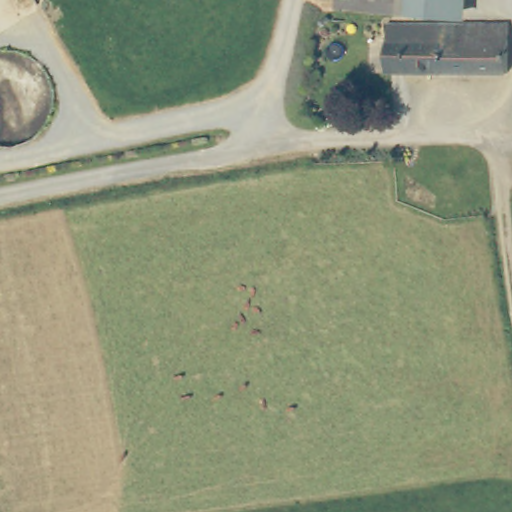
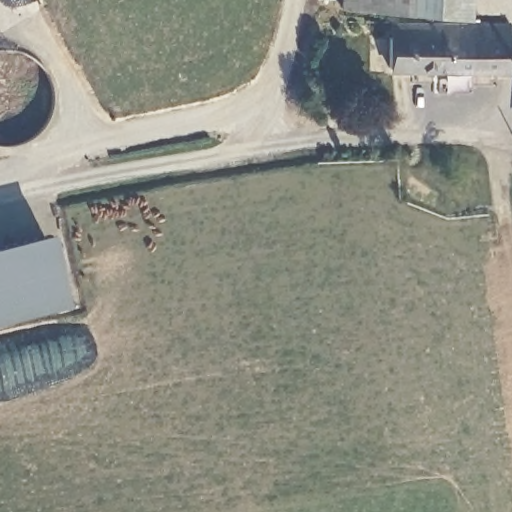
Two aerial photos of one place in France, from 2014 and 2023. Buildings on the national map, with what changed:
unchanged [(344,13),(344,0),(466,0),(465,19),(344,13)]
unchanged [(411,74),(411,71),(393,72),(394,41),(394,40),(392,27),(444,26),(508,25),(509,73),(411,74)]
new [(68,310),(0,327),(0,253),(49,240),(68,310)]

